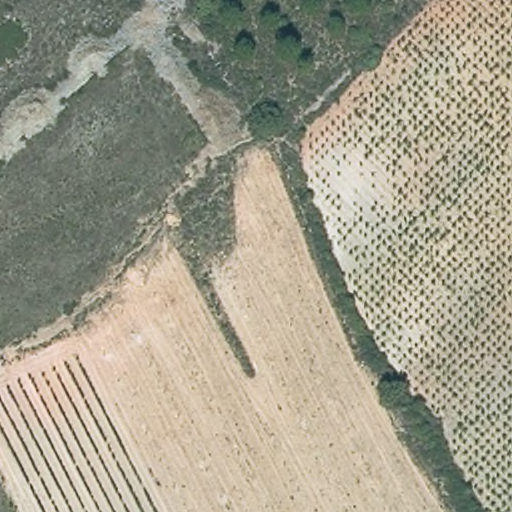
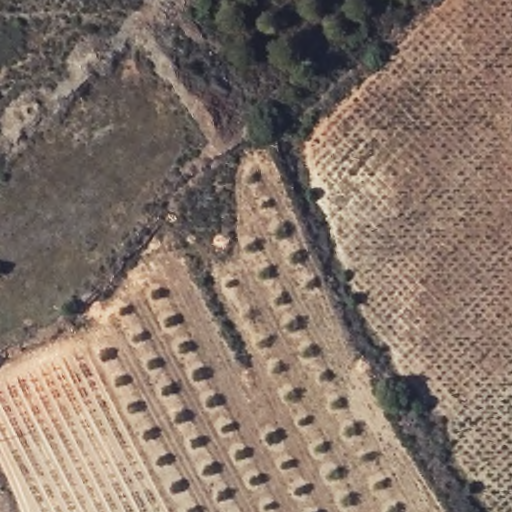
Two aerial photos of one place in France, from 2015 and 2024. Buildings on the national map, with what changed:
[]

